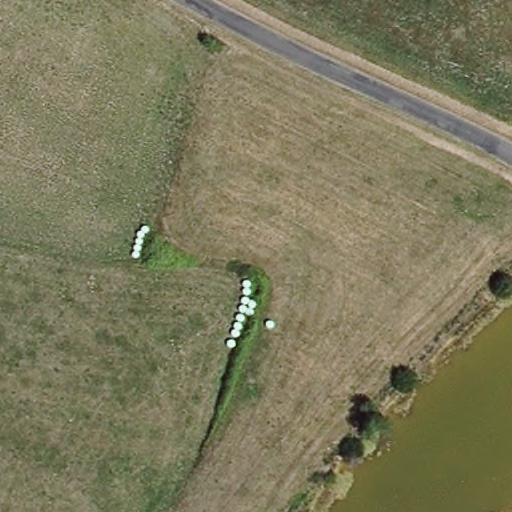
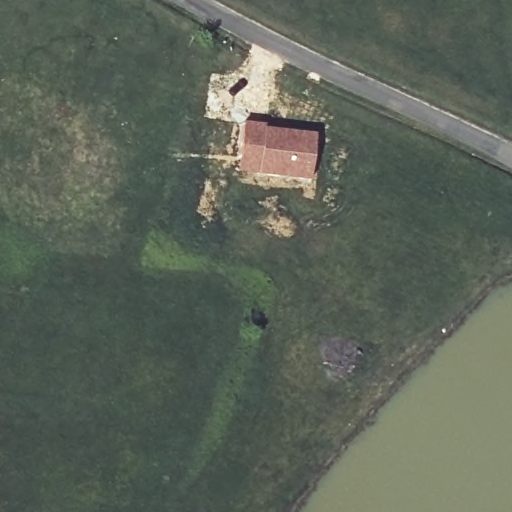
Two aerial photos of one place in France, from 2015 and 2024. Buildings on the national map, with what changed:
new [(243,119),(316,133),(310,181),(235,171),(243,119)]

